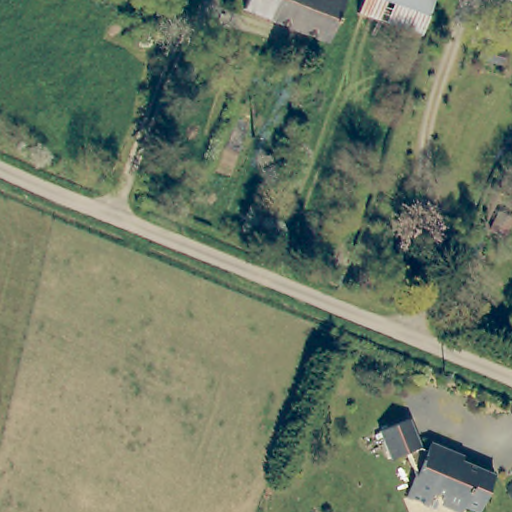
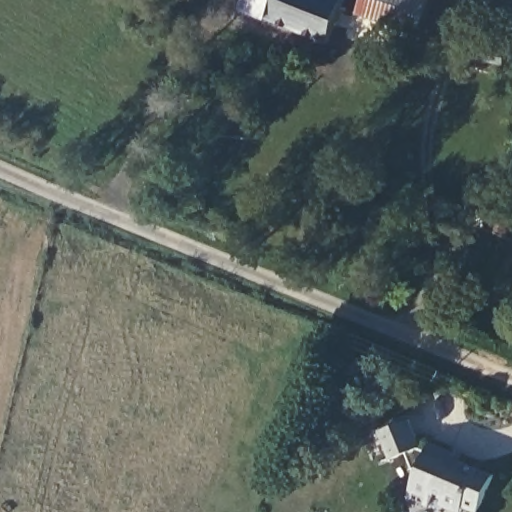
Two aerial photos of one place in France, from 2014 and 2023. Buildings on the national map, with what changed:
unchanged [(247,0),(305,0),(295,28),(244,8),(247,0)]
unchanged [(344,0),(328,41),(295,28),(305,0),(344,0)]
unchanged [(397,26),(362,16),(367,0),(421,0),(412,31),(397,26)]
unchanged [(511,61),(484,54),(487,42),(512,49),(512,54),(511,61)]
unchanged [(380,428),(407,417),(418,446),(424,448),(428,441),(450,451),(449,454),(493,472),(476,510),(464,505),(459,512),(442,504),(443,498),(431,493),(424,504),(405,495),(415,474),(407,451),(390,457),(380,428)]

